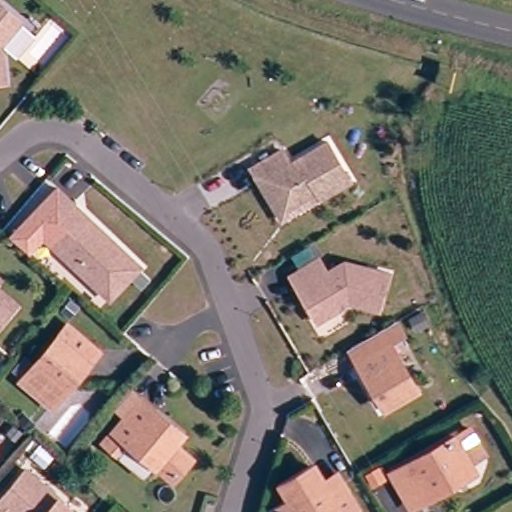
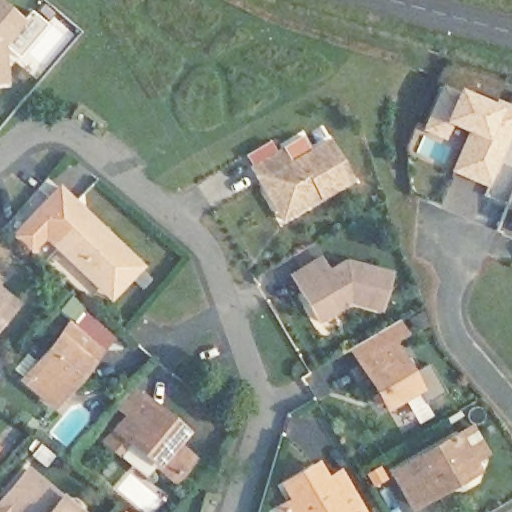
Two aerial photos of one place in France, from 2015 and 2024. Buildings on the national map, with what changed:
unchanged [(14,22),(0,37),(0,10),(14,22)]
new [(456,87),(490,102),(493,98),(512,106),(512,129),(487,187),(448,172),(465,133),(450,127),(443,141),(420,130),(442,85),(454,92),(456,87)]
unchanged [(252,187),(244,173),(276,155),(283,167),(321,146),(344,185),(314,202),(275,226),(252,187)]
new [(512,193),(512,213),(505,211),(512,193)]
unchanged [(99,293),(39,243),(68,209),(139,268),(130,280),(110,302),(99,293)]
unchanged [(20,231),(32,241),(23,252),(11,242),(20,231)]
unchanged [(310,321),(283,276),(309,261),(316,273),(337,261),(381,272),(372,310),(342,302),(333,307),(310,321)]
unchanged [(0,330),(0,305),(13,316),(0,330)]
unchanged [(412,317),(424,312),(429,326),(418,330),(412,317)]
unchanged [(15,385),(61,330),(90,355),(45,409),(15,385)]
unchanged [(357,376),(349,362),(393,337),(400,350),(387,357),(415,404),(384,422),(357,376)]
unchanged [(101,450),(111,438),(122,425),(110,415),(117,406),(125,397),(178,442),(170,451),(187,466),(169,487),(123,448),(113,460),(101,450)]
unchanged [(410,512),(397,512),(381,485),(461,438),(470,454),(475,463),(457,473),(462,482),(445,492),(435,498),(410,512)]
unchanged [(272,510),(285,502),(275,487),(308,467),(317,482),(331,474),(336,482),(353,512),(273,512),(272,510)]
unchanged [(19,474),(64,512),(0,512),(0,496),(19,474)]

